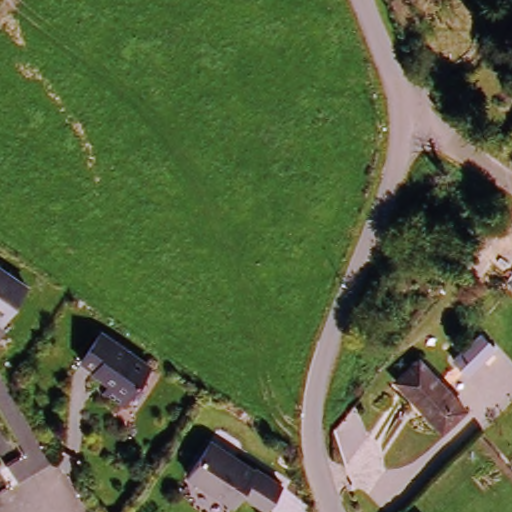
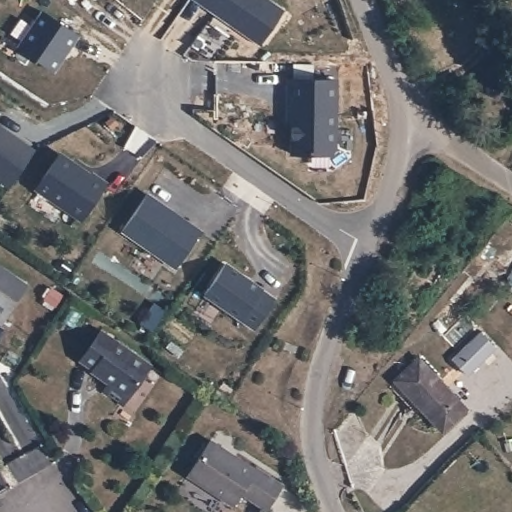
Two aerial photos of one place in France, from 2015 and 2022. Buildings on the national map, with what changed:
new [(284,10),(260,45),(194,0),(270,0),(284,10)]
new [(42,11),(77,36),(53,71),(17,46),(42,11)]
new [(286,84),(335,85),(333,149),(328,153),(290,153),(290,119),(285,119),(286,84)]
new [(1,130),(20,143),(20,141),(35,151),(8,189),(0,183),(0,127),(2,129),(1,130)]
new [(58,159),(65,158),(92,178),(93,176),(106,186),(80,222),(36,189),(58,159)]
new [(147,195),(200,232),(175,268),(121,230),(147,195)]
unchanged [(0,315),(0,264),(25,283),(0,315)]
new [(225,264),(262,290),(261,290),(275,300),(254,329),(204,294),(225,264)]
unchanged [(506,275),(512,271),(512,281),(506,275)]
unchanged [(147,365),(116,401),(98,386),(105,379),(89,365),(90,363),(78,353),(101,327),(147,365)]
unchanged [(474,374),(457,356),(481,333),(497,349),(474,374)]
unchanged [(412,370),(459,420),(441,437),(393,388),(412,370)]
unchanged [(252,471),(251,472),(277,490),(259,512),(235,494),(226,505),(183,472),(208,440),(252,471)]

